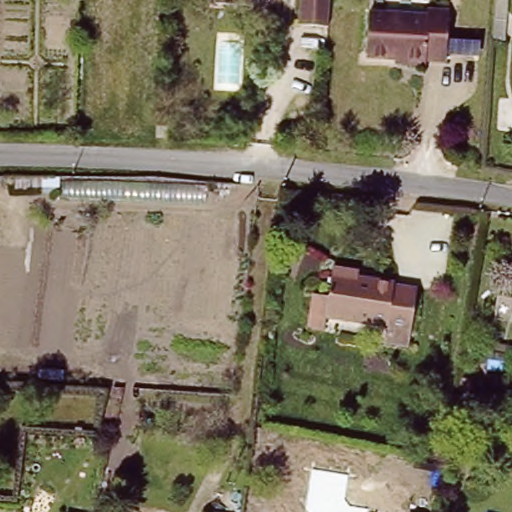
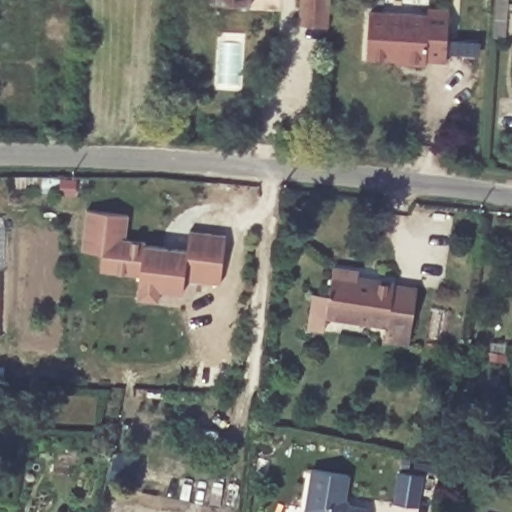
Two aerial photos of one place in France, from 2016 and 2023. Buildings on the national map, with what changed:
unchanged [(248,15),(211,12),(212,0),(248,0),(248,15)]
unchanged [(298,20),(299,0),(328,0),(326,22),(298,20)]
unchanged [(404,13),(431,16),(432,8),(451,9),(447,58),(429,57),(430,61),(407,59),(407,55),(402,54),(404,13)]
unchanged [(372,53),(375,11),(404,13),(402,54),(372,53)]
new [(218,284),(185,279),(182,292),(158,289),(158,300),(137,297),(138,285),(139,275),(100,270),(103,252),(81,250),(85,210),(128,214),(125,238),(144,240),(144,243),(186,249),(190,229),(225,233),(218,284)]
new [(0,335),(0,217),(4,217),(1,335),(0,335)]
unchanged [(388,341),(389,334),(390,324),(330,315),(314,312),(318,279),(334,281),(336,266),(364,270),(361,282),(376,284),(376,281),(399,284),(399,286),(422,290),(414,338),(414,345),(388,341)]
new [(346,475),(344,497),(348,505),(366,508),(366,512),(308,512),(305,508),(311,469),(346,475)]

